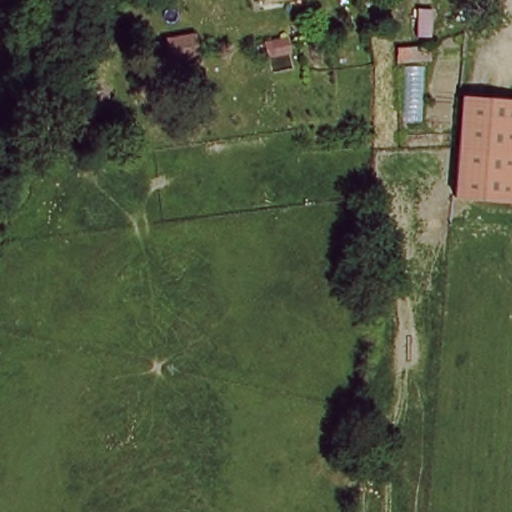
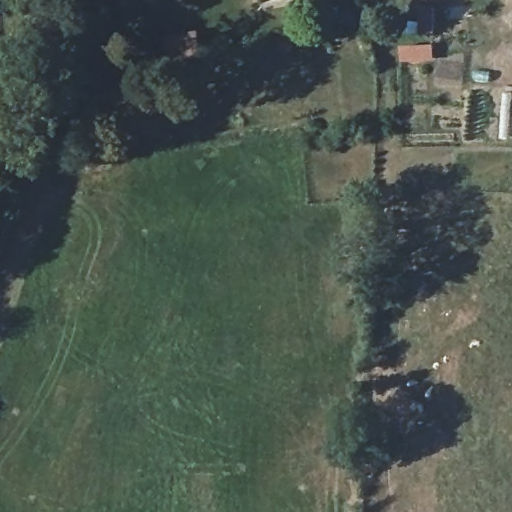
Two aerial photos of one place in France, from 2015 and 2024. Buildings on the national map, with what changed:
unchanged [(258,4),(257,0),(277,0),(258,4)]
unchanged [(417,10),(432,10),(432,39),(416,39),(417,10)]
unchanged [(156,47),(199,37),(205,58),(161,66),(156,47)]
unchanged [(270,43),(289,38),(294,56),(271,61),(270,43)]
unchanged [(397,49),(430,45),(433,60),(397,64),(397,49)]
demolished [(467,105),(512,109),(512,218),(466,217),(467,105)]
unchanged [(75,160),(98,154),(102,169),(79,175),(75,160)]

